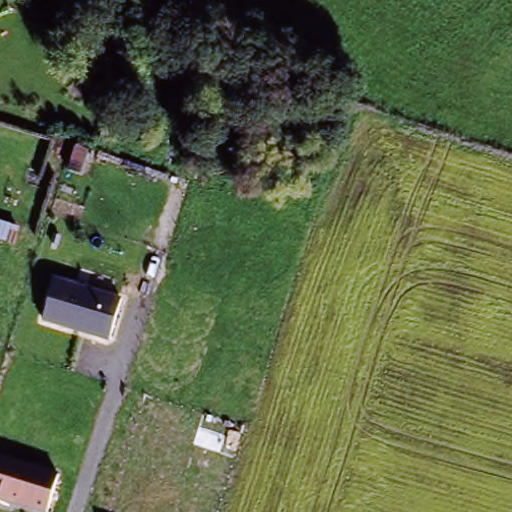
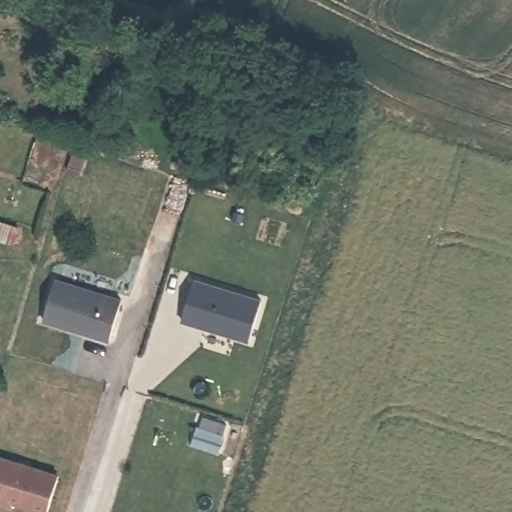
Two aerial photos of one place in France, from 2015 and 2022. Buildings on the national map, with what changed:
unchanged [(130,67),(74,46),(82,25),(138,46),(130,67)]
unchanged [(121,298),(110,343),(42,324),(55,278),(121,298)]
new [(263,301),(250,343),(181,322),(196,281),(263,301)]
unchanged [(47,512),(35,512),(10,506),(8,509),(0,506),(0,456),(56,473),(47,512)]

